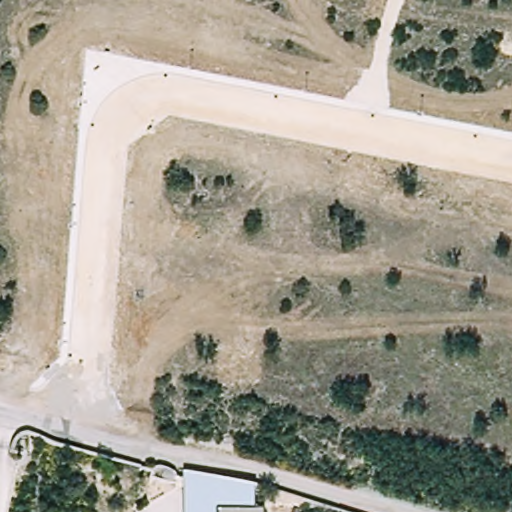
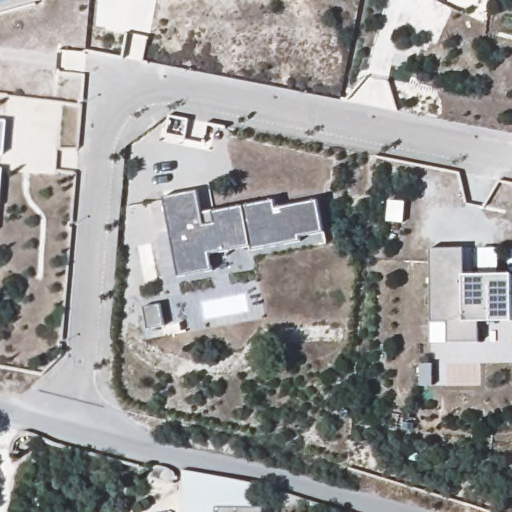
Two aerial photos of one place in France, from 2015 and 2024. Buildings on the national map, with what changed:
new [(188,119),(185,138),(166,134),(170,116),(188,119)]
new [(3,161),(0,161),(0,128),(6,128),(3,161)]
new [(0,196),(0,176),(2,176),(0,196)]
new [(200,193),(207,228),(216,226),(214,215),(277,203),(278,210),(321,202),(327,235),(303,240),(304,244),(255,254),(254,249),(212,256),(216,274),(181,280),(166,200),(200,193)]
new [(467,280),(480,280),(512,282),(512,329),(482,330),(484,347),(452,349),(451,328),(435,329),(432,255),(465,253),(467,280)]
new [(161,303),(164,324),(148,328),(143,306),(161,303)]
new [(434,366),(435,388),(423,388),(421,366),(434,366)]
unchanged [(262,507),(262,512),(183,512),(183,471),(252,486),(255,508),(262,507)]

